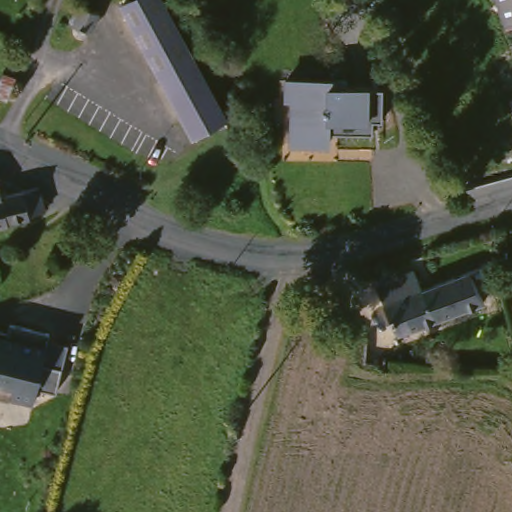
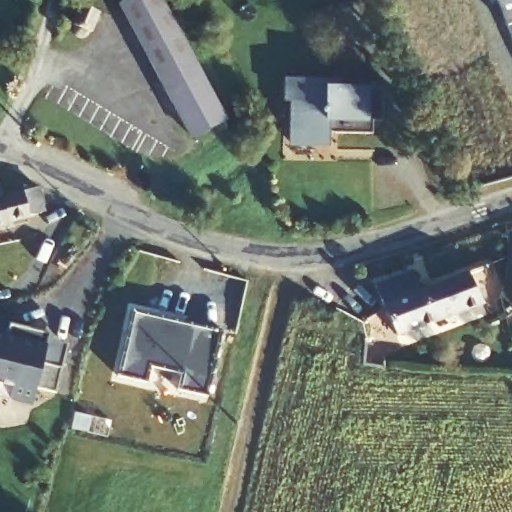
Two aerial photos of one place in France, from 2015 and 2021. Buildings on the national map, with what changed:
unchanged [(133,0),(162,0),(228,121),(196,139),(123,5),(133,0)]
unchanged [(501,0),(512,0),(512,29),(509,30),(501,0)]
unchanged [(90,32),(89,31),(87,34),(87,35),(86,35),(86,36),(85,36),(84,37),(83,37),(82,37),(82,38),(81,38),(80,38),(80,39),(79,39),(79,38),(78,38),(77,38),(76,37),(75,37),(74,36),(73,36),(73,35),(72,35),(72,34),(71,34),(71,33),(71,32),(70,31),(70,30),(70,29),(70,28),(70,27),(70,26),(71,25),(72,23),(71,22),(80,5),(98,15),(90,32)]
unchanged [(333,80),(333,87),(380,85),(381,117),(372,118),(372,131),(328,133),(329,144),(292,145),(290,102),(284,102),(283,82),(333,80)]
unchanged [(1,199),(38,189),(44,210),(28,214),(30,217),(7,223),(7,225),(0,227),(0,193),(1,199)]
unchanged [(446,282),(475,271),(486,302),(437,320),(426,290),(446,282)]
unchanged [(401,335),(391,307),(375,313),(367,291),(418,272),(426,290),(437,320),(401,335)]
new [(178,390),(183,373),(152,366),(147,383),(119,376),(133,315),(220,333),(208,396),(178,390)]
unchanged [(35,398),(34,402),(13,395),(12,398),(0,394),(0,330),(13,334),(17,321),(56,333),(54,340),(72,345),(65,368),(58,393),(54,405),(35,398)]
demolished [(394,370),(374,365),(379,337),(390,340),(399,342),(394,370)]

